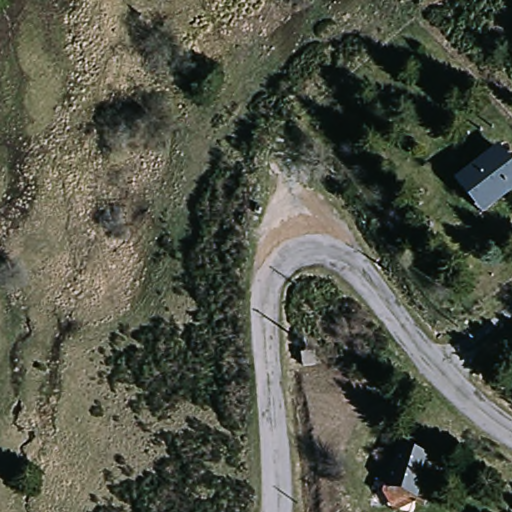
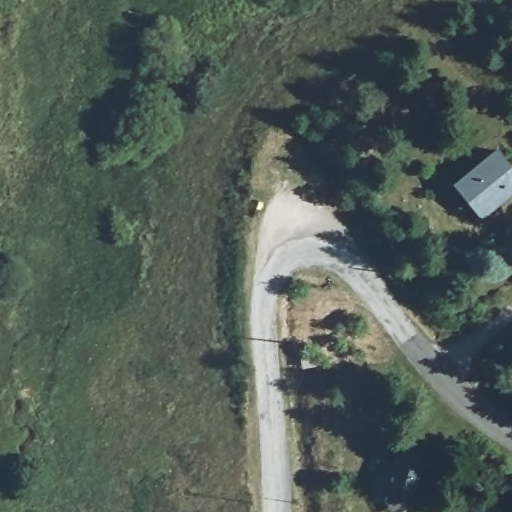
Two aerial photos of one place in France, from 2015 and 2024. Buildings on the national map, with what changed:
unchanged [(458,186),(499,153),(512,168),(512,196),(490,214),(484,220),(471,203),(458,186)]
unchanged [(304,339),(317,337),(318,351),(304,352),(304,339)]
unchanged [(400,449),(430,458),(417,503),(386,493),(400,449)]

